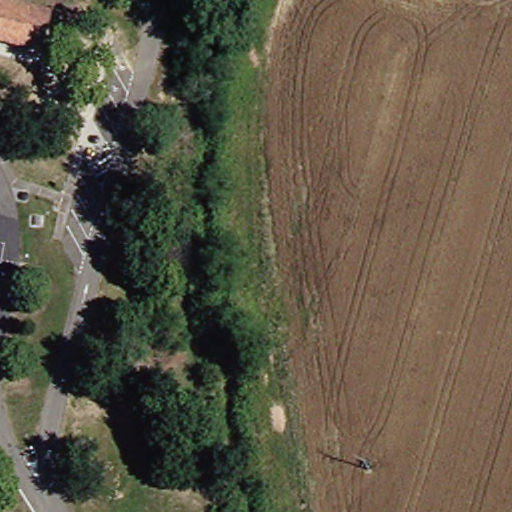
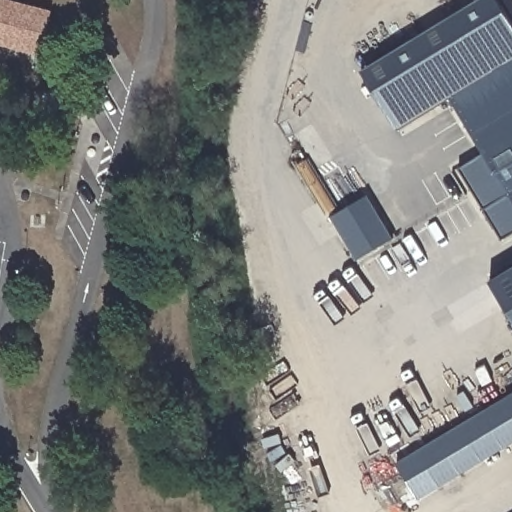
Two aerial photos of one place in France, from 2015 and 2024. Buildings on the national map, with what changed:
unchanged [(0,45),(0,0),(1,0),(51,13),(41,54),(41,55),(0,45)]
new [(512,198),(510,194),(483,209),(459,169),(485,154),(451,98),(397,130),(361,70),(477,0),(499,0),(512,21),(512,198)]
new [(392,239),(356,261),(330,218),(366,196),(392,239)]
new [(512,267),(512,319),(489,281),(512,267)]
new [(512,443),(419,499),(397,464),(512,396),(512,443)]

